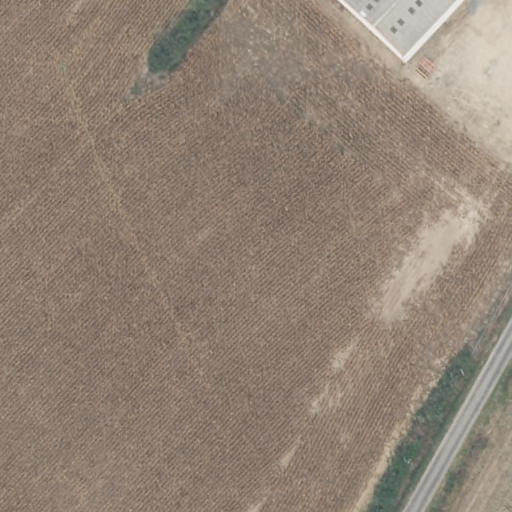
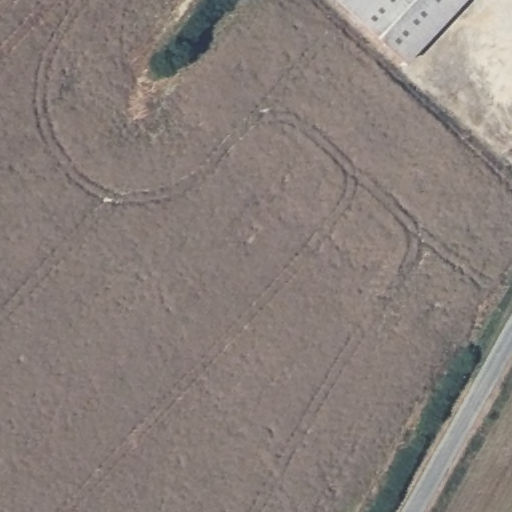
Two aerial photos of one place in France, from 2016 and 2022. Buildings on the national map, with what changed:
unchanged [(465,0),(406,63),(339,0),(465,0)]

